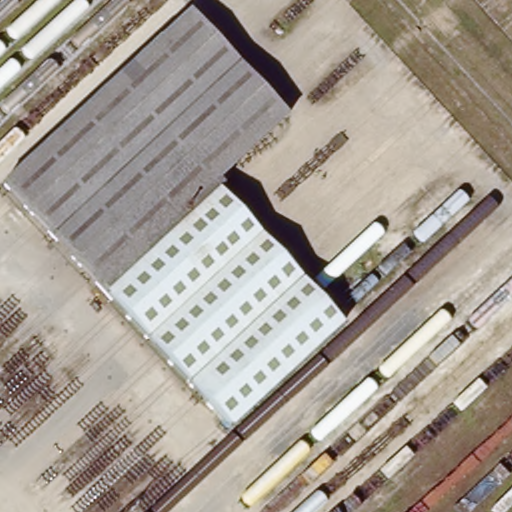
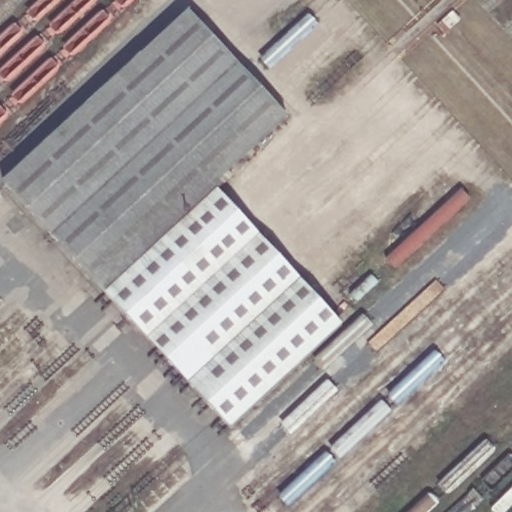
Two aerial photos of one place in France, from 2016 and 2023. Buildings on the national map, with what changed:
unchanged [(213,20),(230,39),(248,59),(265,78),(280,94),(298,114),(218,191),(227,200),(247,224),(267,247),(287,268),(311,295),(328,315),(337,325),(228,423),(203,395),(180,370),(162,349),(140,325),(120,304),(90,271),(77,255),(57,234),(39,214),(23,197),(5,176),(196,2),(213,20)]

